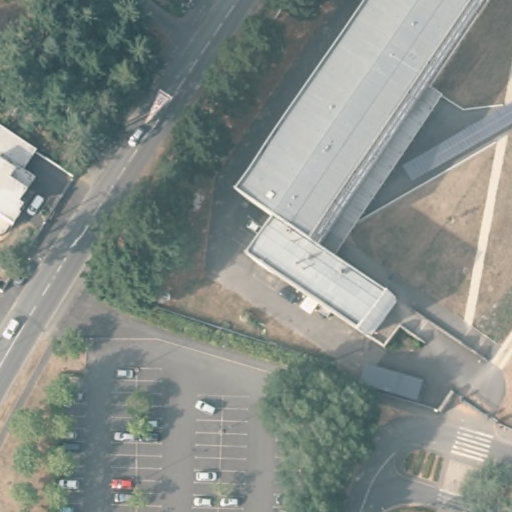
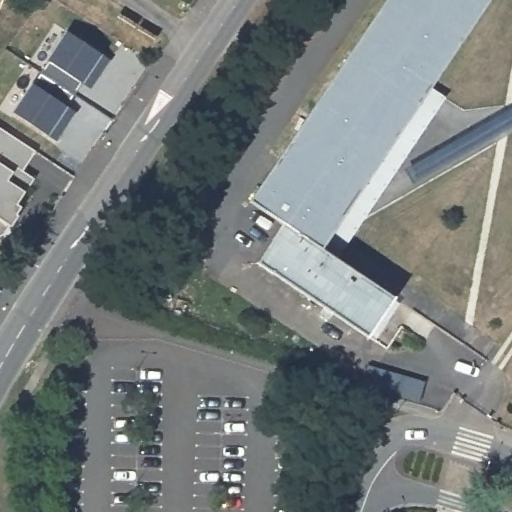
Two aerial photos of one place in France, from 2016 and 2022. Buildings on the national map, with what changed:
unchanged [(327,246),(400,295),(372,336),(277,270),(275,271),(258,260),(286,221),(254,197),(388,0),(493,0),(394,146),(327,246)]
new [(80,83),(72,95),(38,72),(65,31),(107,60),(95,79),(88,89),(80,83)]
new [(65,122),(53,141),(10,112),(38,72),(72,95),(64,107),(72,112),(65,122)]
unchanged [(37,150),(25,172),(32,178),(5,228),(0,226),(0,128),(37,150)]
unchanged [(420,404),(368,387),(367,365),(424,381),(420,404)]

